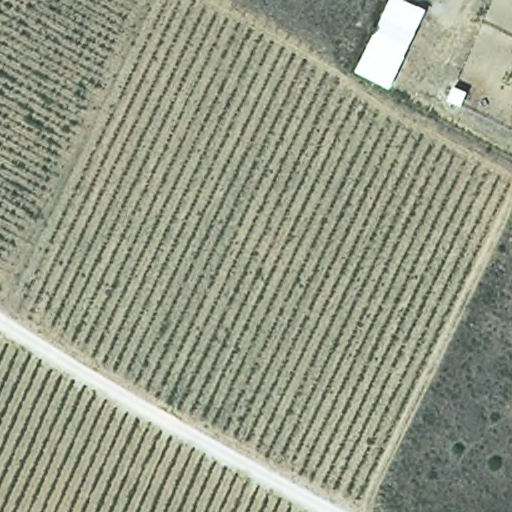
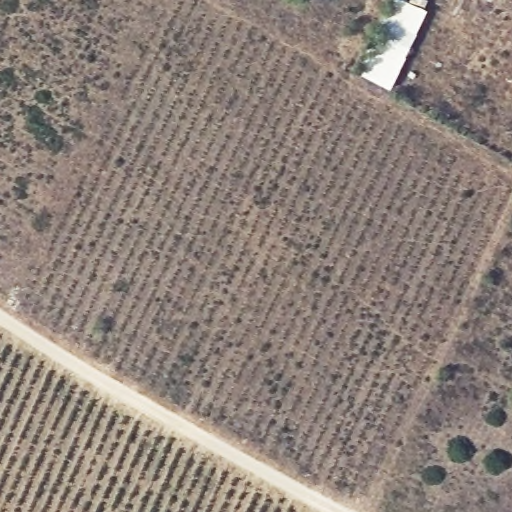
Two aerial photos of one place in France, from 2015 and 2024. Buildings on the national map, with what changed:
unchanged [(389,0),(404,0),(428,11),(391,90),(355,74),(389,0)]

